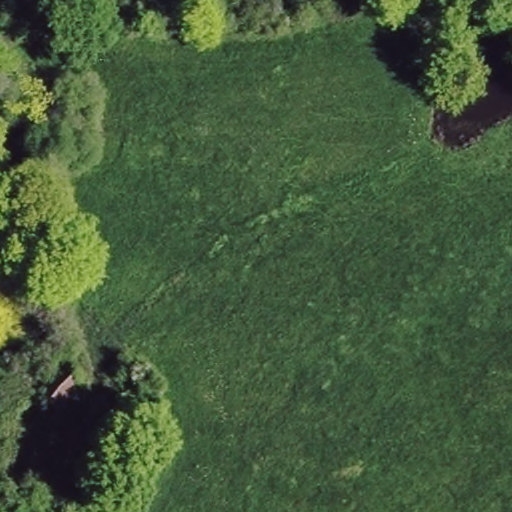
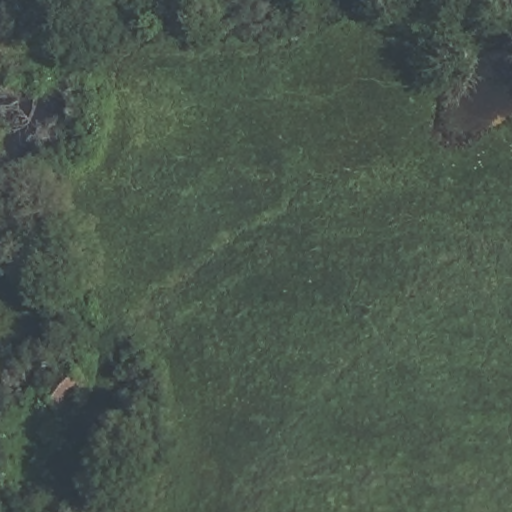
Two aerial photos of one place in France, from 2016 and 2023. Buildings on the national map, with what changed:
unchanged [(105,416),(79,388),(105,362),(113,354),(141,381),(105,416)]

